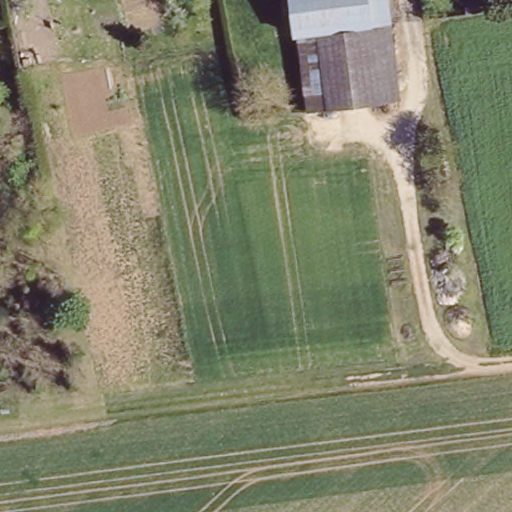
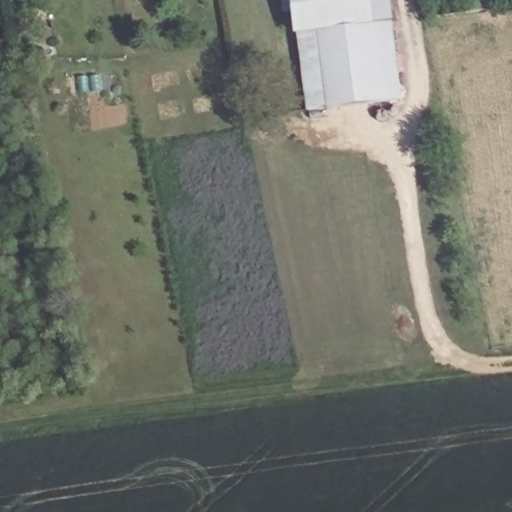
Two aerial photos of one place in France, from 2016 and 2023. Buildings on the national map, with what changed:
unchanged [(389,17),(331,25),(296,29),(291,0),(386,0),(389,17)]
unchanged [(490,7),(464,10),(463,0),(489,0),(490,7)]
unchanged [(331,25),(389,17),(399,91),(308,105),(296,29),(331,25)]

